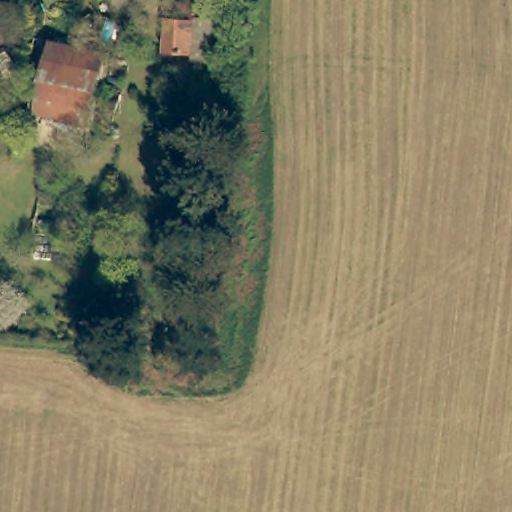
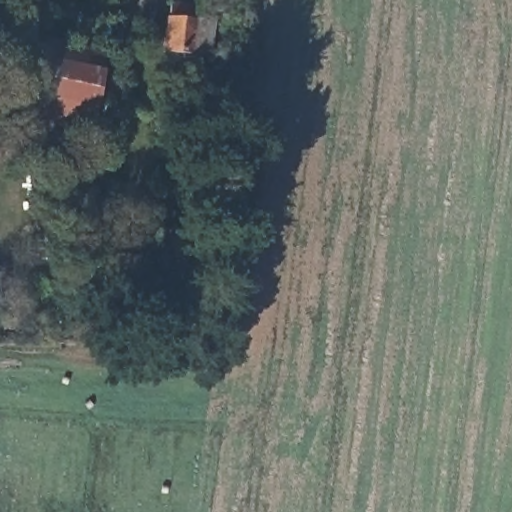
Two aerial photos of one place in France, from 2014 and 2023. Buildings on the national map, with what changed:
unchanged [(202,17),(196,65),(169,61),(174,26),(176,27),(177,14),(202,17)]
unchanged [(45,56),(101,69),(89,130),(85,144),(28,131),(45,56)]

